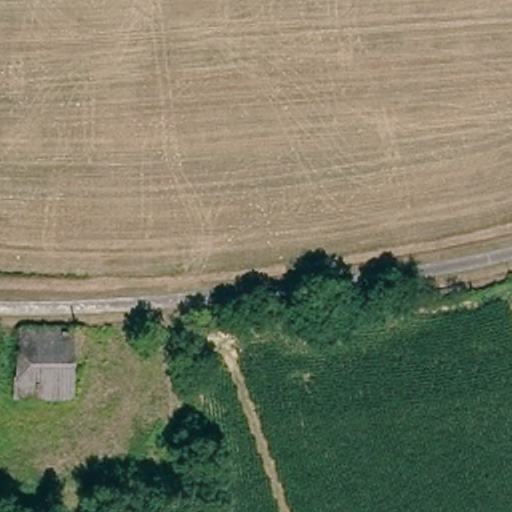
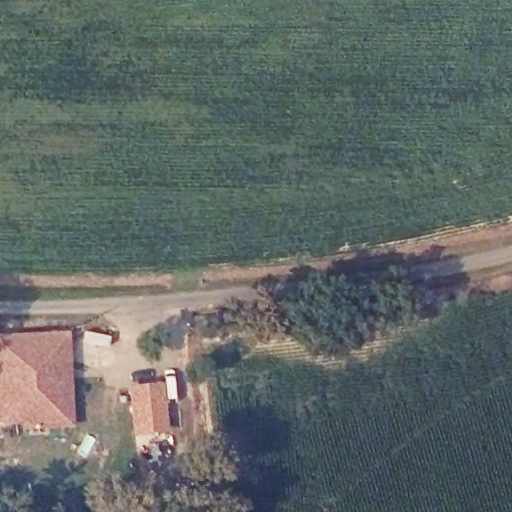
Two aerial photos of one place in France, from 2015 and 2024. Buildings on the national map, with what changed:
demolished [(87,367),(37,372),(31,330),(84,324),(87,367)]
demolished [(37,372),(87,367),(89,392),(17,397),(12,331),(31,330),(37,372)]
new [(72,428),(25,431),(24,422),(0,424),(0,336),(68,331),(72,428)]
new [(168,430),(133,435),(127,387),(163,383),(168,430)]

